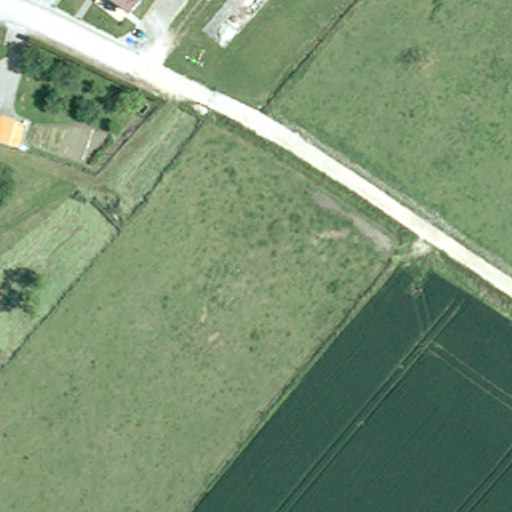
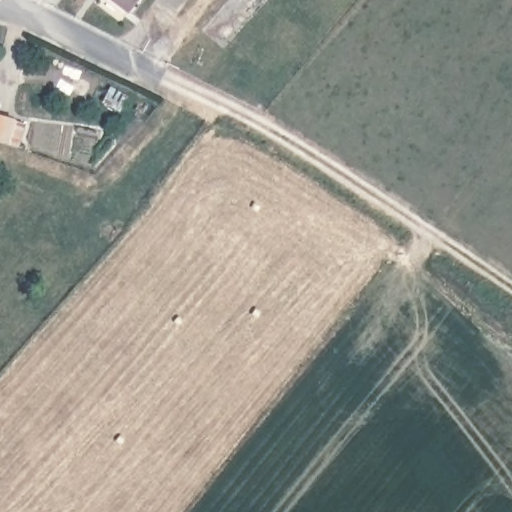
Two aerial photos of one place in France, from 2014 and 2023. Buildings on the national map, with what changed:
unchanged [(133,15),(113,0),(145,0),(133,15)]
unchanged [(13,137),(0,134),(0,109),(20,114),(28,116),(23,139),(13,137)]

